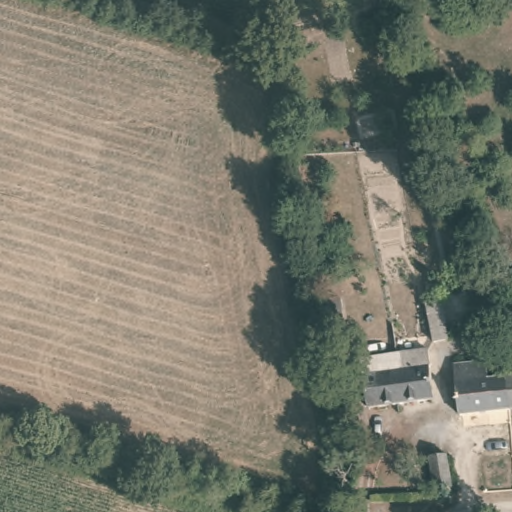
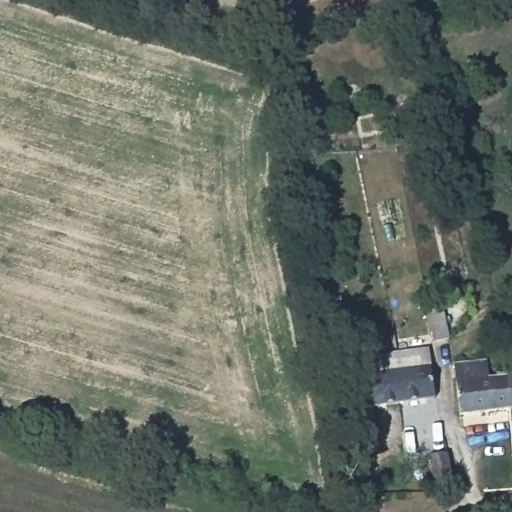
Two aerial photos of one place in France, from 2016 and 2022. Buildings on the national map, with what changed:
unchanged [(474,186),(468,197),(463,175),(474,186)]
unchanged [(447,292),(453,326),(454,332),(437,336),(429,297),(447,292)]
unchanged [(338,295),(344,332),(328,333),(322,297),(338,295)]
unchanged [(437,350),(442,398),(380,407),(373,356),(437,350)]
unchanged [(512,409),(497,411),(462,413),(457,363),(491,361),(493,377),(511,376),(512,374),(512,409)]
unchanged [(435,459),(441,488),(426,490),(419,461),(435,459)]

